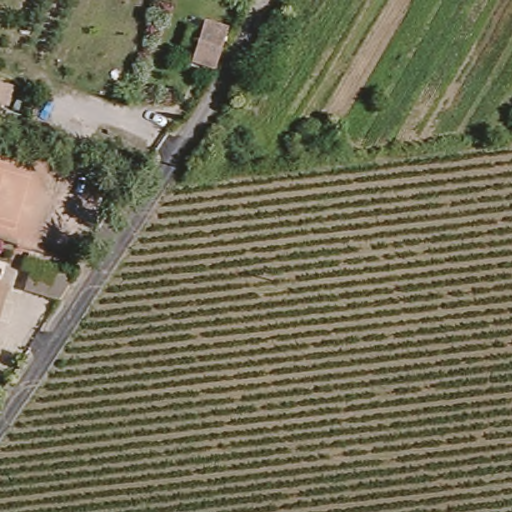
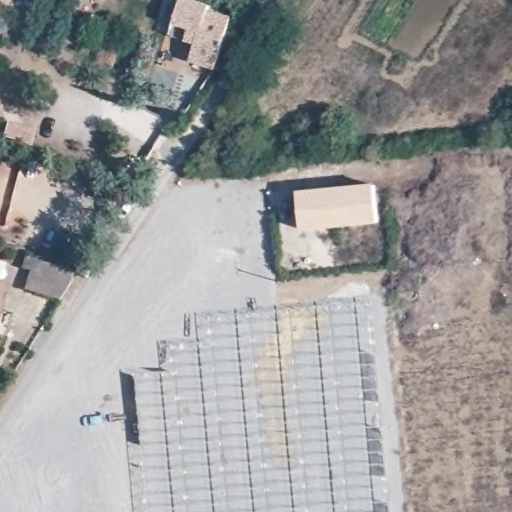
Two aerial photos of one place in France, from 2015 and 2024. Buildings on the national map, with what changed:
unchanged [(210,14),(231,21),(218,64),(195,57),(210,14)]
new [(8,122),(35,131),(30,146),(3,137),(8,122)]
new [(140,186),(133,197),(113,191),(117,180),(140,186)]
new [(372,187),(376,225),(300,234),(296,196),(372,187)]
unchanged [(61,301),(22,288),(27,270),(20,268),(23,258),(78,275),(61,301)]
unchanged [(0,319),(0,284),(10,287),(0,319)]
new [(389,512),(144,512),(130,374),(170,370),(166,346),(207,343),(202,317),(369,302),(389,512)]

